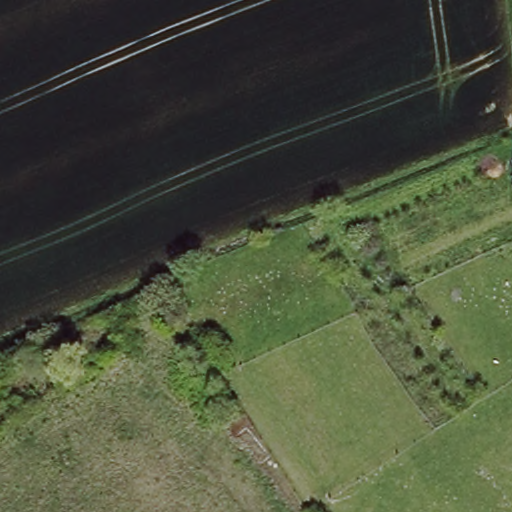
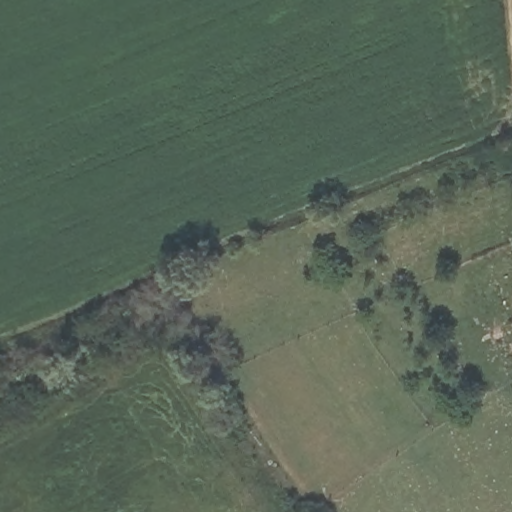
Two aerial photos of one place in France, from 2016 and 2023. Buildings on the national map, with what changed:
[]

